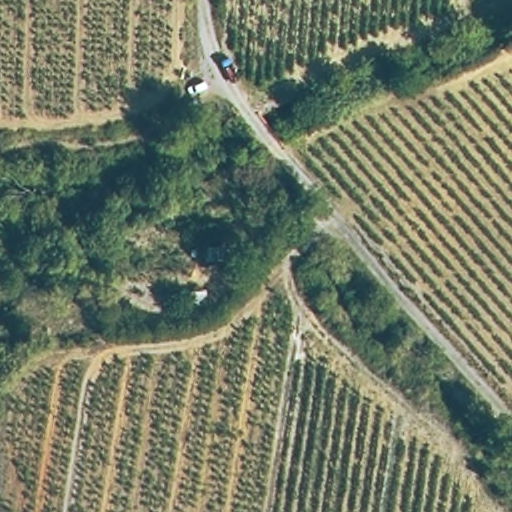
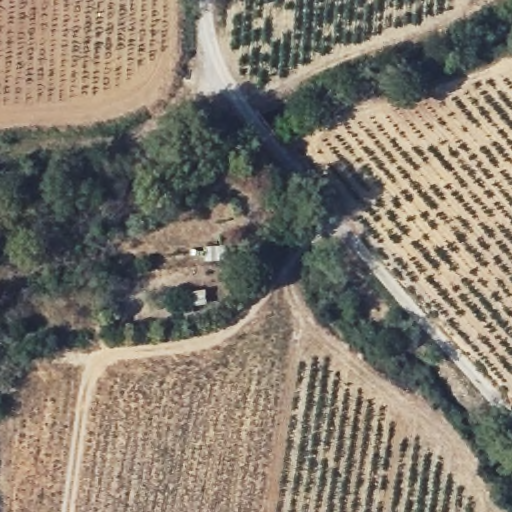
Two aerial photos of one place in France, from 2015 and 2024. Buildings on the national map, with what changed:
unchanged [(224,260),(201,260),(201,243),(223,242),(224,260)]

